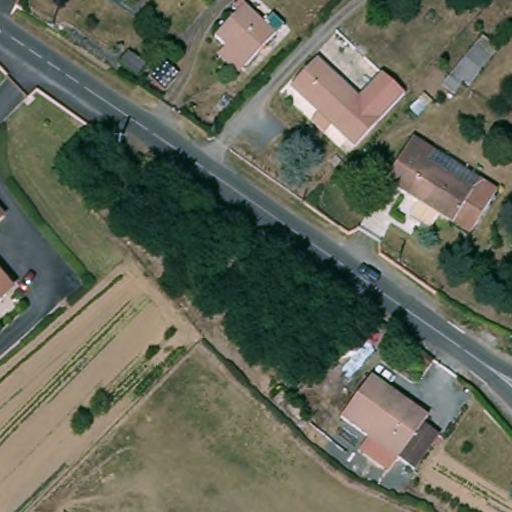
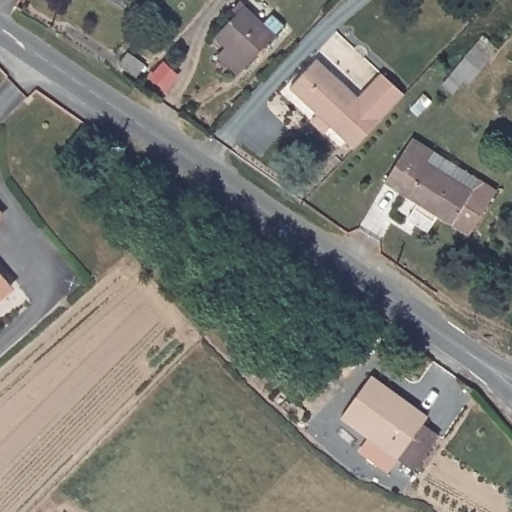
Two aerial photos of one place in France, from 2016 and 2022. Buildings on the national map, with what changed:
unchanged [(269,28),(278,20),(286,29),(247,65),(217,32),(246,4),(269,28)]
unchanged [(489,28),(506,44),(465,90),(452,80),(489,28)]
unchanged [(137,71),(123,61),(130,52),(143,61),(137,71)]
unchanged [(315,118),(322,112),(296,83),(324,58),(363,100),(388,77),(405,95),(378,123),(355,149),(332,123),(325,129),(315,118)]
unchanged [(472,233),(444,214),(432,230),(413,217),(423,202),(390,179),(417,140),(436,152),(477,181),(498,195),(472,233)]
unchanged [(7,213),(0,220),(0,205),(7,213)]
unchanged [(10,290),(0,299),(0,266),(7,275),(16,285),(10,290)]
unchanged [(362,449),(372,435),(345,415),(374,374),(431,415),(427,421),(442,433),(417,467),(402,456),(392,470),(362,449)]

